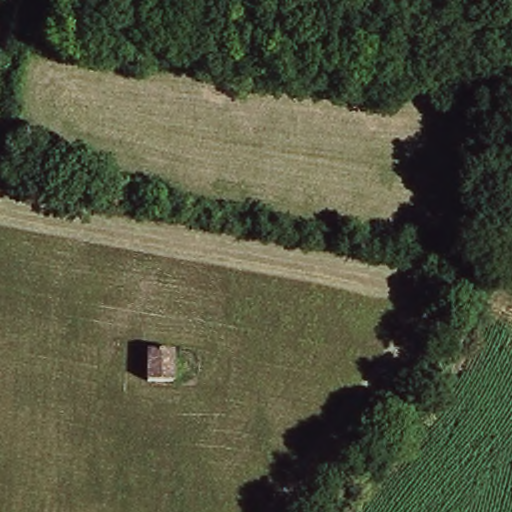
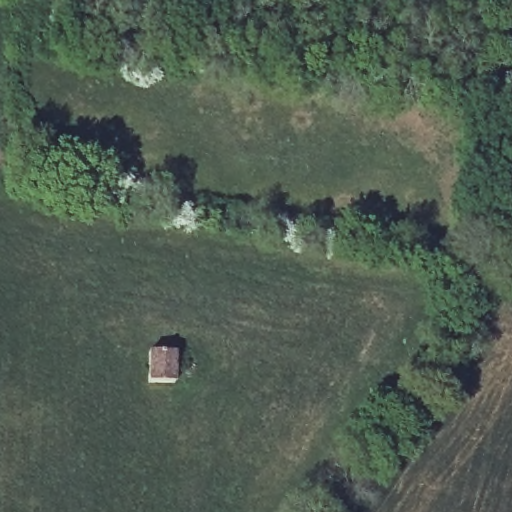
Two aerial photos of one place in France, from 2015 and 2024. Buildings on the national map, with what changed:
unchanged [(145,382),(147,354),(171,354),(170,382),(145,382)]

